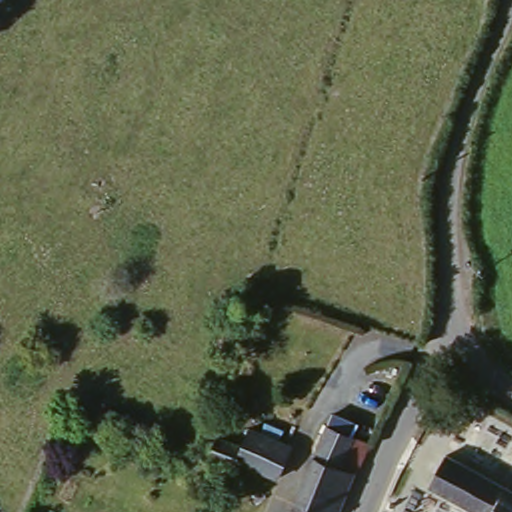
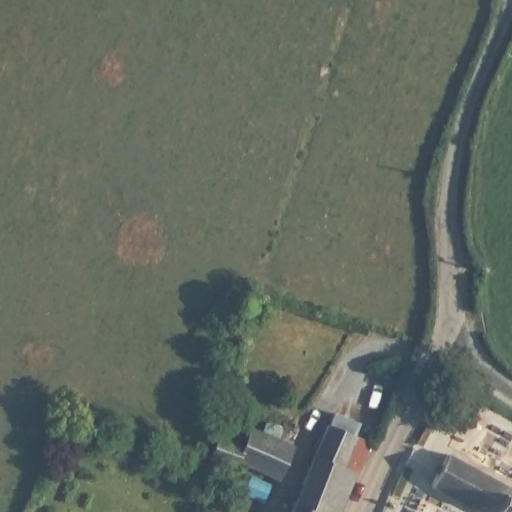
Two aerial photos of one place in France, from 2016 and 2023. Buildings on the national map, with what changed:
unchanged [(58,383),(70,390),(64,400),(50,395),(58,383)]
unchanged [(325,429),(370,442),(342,512),(288,512),(325,429)]
unchanged [(244,445),(250,433),(295,446),(277,481),(252,473),(206,455),(215,435),(244,445)]
unchanged [(512,494),(512,512),(473,512),(421,483),(437,453),(512,494)]

